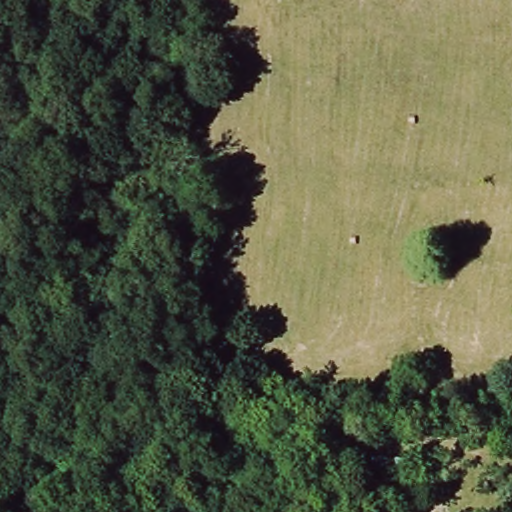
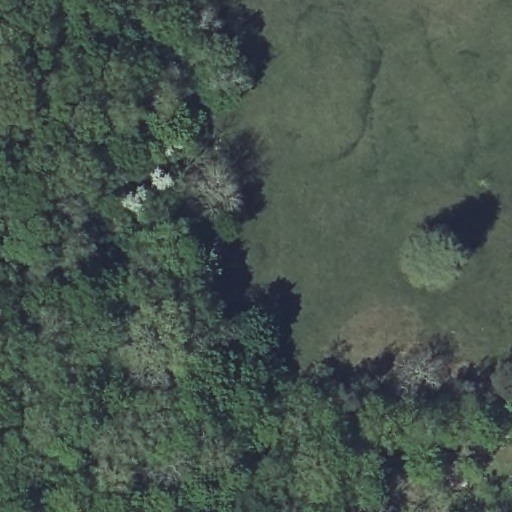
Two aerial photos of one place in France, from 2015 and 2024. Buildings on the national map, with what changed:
unchanged [(412,442),(412,457),(389,457),(389,442),(412,442)]

